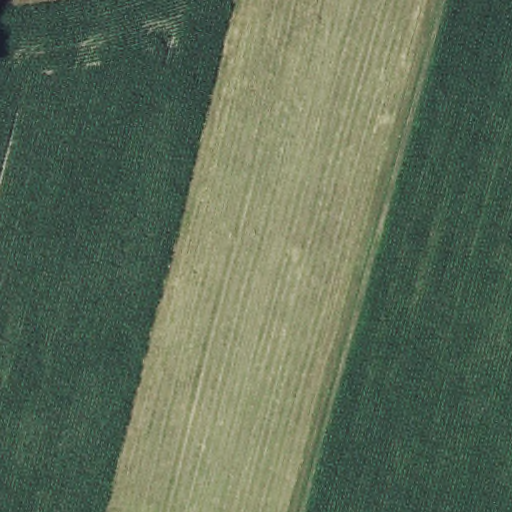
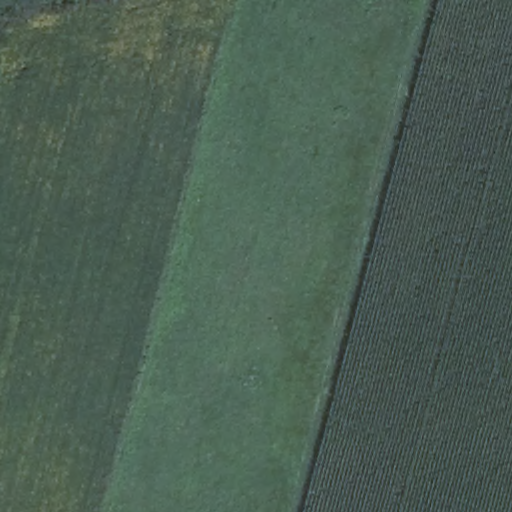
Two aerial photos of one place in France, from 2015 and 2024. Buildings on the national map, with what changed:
[]

